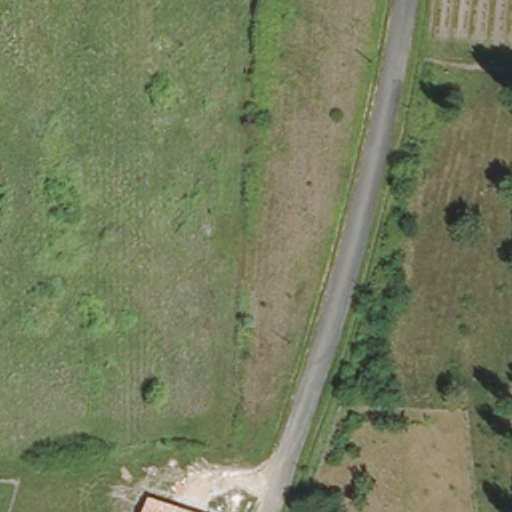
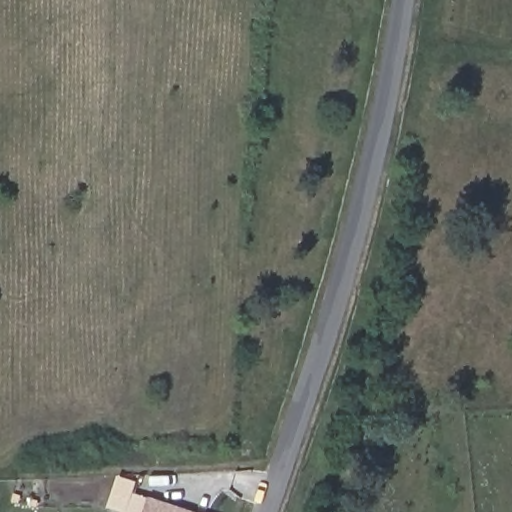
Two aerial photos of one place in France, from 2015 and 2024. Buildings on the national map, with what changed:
unchanged [(197,512),(145,512),(150,497),(197,512)]

